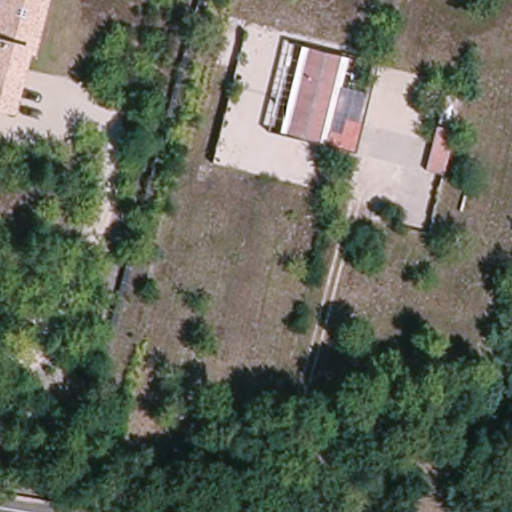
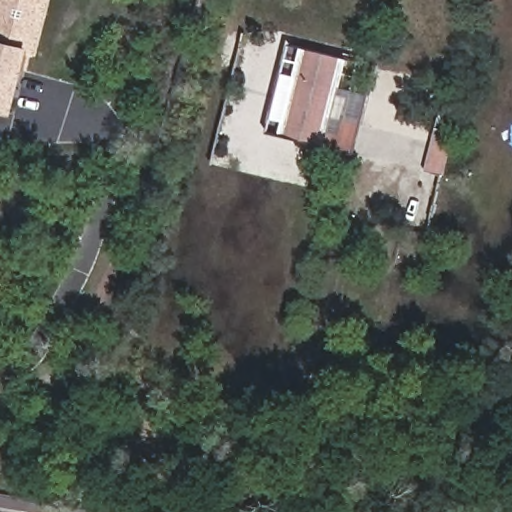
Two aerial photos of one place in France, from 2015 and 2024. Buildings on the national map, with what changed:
unchanged [(0,131),(0,0),(48,0),(17,134),(0,131)]
unchanged [(293,137),(278,134),(275,133),(297,42),(316,47),(356,57),(353,67),(332,147),(293,137)]

